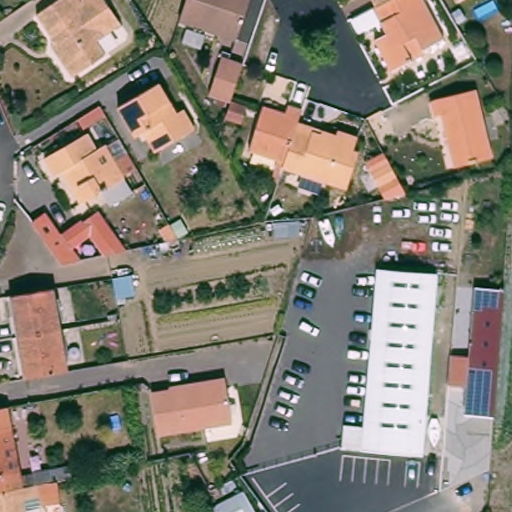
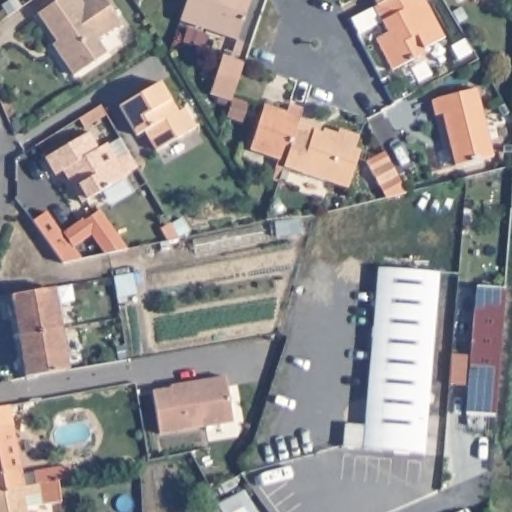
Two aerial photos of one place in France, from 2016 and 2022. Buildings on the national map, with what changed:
unchanged [(61,0),(103,0),(121,25),(98,40),(107,54),(73,77),(58,56),(63,52),(38,16),(61,0)]
unchanged [(236,41),(180,21),(187,0),(250,0),(236,41)]
unchanged [(413,60),(393,71),(376,40),(387,34),(381,23),(373,7),(377,5),(378,5),(387,0),(441,0),(428,7),(444,38),(423,49),(411,56),(413,60)]
unchanged [(378,5),(377,5),(374,0),(387,0),(378,5)]
unchanged [(243,126),(227,121),(231,108),(210,101),(223,62),(244,68),(232,106),(248,111),(243,126)]
unchanged [(160,83),(178,113),(184,109),(195,129),(157,151),(146,131),(137,136),(120,107),(160,83)]
unchanged [(478,90),(494,156),(455,166),(443,115),(435,116),(431,101),(478,90)]
unchanged [(275,171),(278,160),(250,150),(265,106),(286,114),(289,104),(304,110),(300,121),(284,169),(282,174),(275,171)]
unchanged [(300,121),(338,134),(340,129),(360,136),(356,150),(361,151),(349,189),(284,169),(300,121)]
unchanged [(56,176),(46,159),(89,133),(98,149),(106,144),(126,177),(82,204),(73,189),(63,171),(56,176)]
unchanged [(380,186),(372,173),(391,163),(398,177),(380,186)]
unchanged [(101,255),(83,259),(62,264),(33,222),(47,212),(62,234),(64,233),(66,235),(78,225),(101,255)]
unchanged [(179,238),(167,241),(160,229),(170,224),(179,238)]
unchanged [(438,273),(423,453),(344,447),(345,425),(366,427),(380,268),(438,273)]
unchanged [(63,370),(27,377),(13,294),(59,285),(75,368),(63,370)]
unchanged [(494,416),(466,413),(478,286),(504,288),(502,314),(495,403),(494,416)]
unchanged [(10,395),(11,405),(0,407),(0,381),(6,379),(10,395)]
unchanged [(153,395),(173,392),(172,388),(225,380),(233,425),(161,437),(153,395)]
unchanged [(65,477),(61,478),(0,490),(0,407),(11,405),(25,475),(63,467),(71,465),(74,475),(65,477)]
unchanged [(64,501),(43,504),(41,493),(26,496),(28,512),(0,512),(0,490),(61,478),(64,501)]
unchanged [(250,512),(233,512),(247,505),(250,512)]

